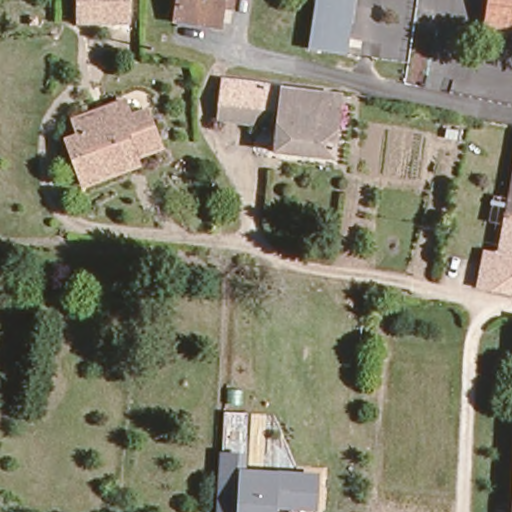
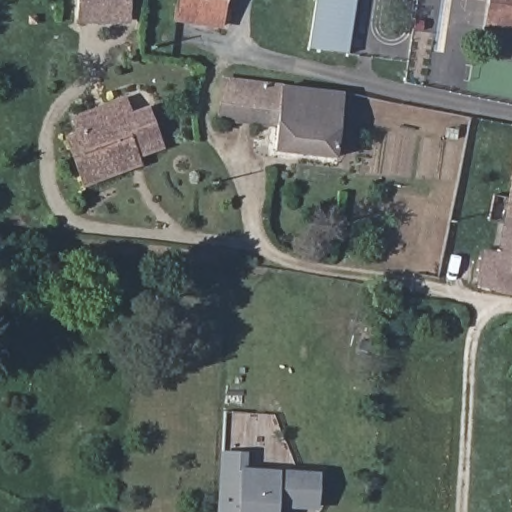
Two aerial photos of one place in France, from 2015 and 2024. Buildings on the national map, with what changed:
unchanged [(132,20),(86,23),(85,0),(131,0),(132,20)]
unchanged [(233,12),(223,11),(220,31),(176,24),(179,0),(235,0),(233,12)]
unchanged [(310,50),(317,0),(357,0),(357,4),(349,56),(310,50)]
unchanged [(494,34),(499,0),(512,0),(512,37),(494,34)]
unchanged [(334,165),(275,157),(280,119),(258,116),(257,129),(222,125),(227,85),(342,101),(334,165)]
unchanged [(71,122),(124,101),(131,117),(148,109),(164,146),(139,156),(100,172),(83,136),(77,138),(71,122)]
unchanged [(100,172),(139,156),(142,165),(86,188),(67,143),(77,138),(83,136),(100,172)]
unchanged [(506,218),(508,200),(512,179),(512,219),(506,218)]
unchanged [(487,253),(497,256),(503,224),(488,222),(492,197),(508,200),(506,218),(512,219),(512,293),(492,290),(480,287),(487,253)]
unchanged [(226,484),(226,455),(242,455),(240,471),(318,472),(317,507),(277,506),(278,512),(225,512),(226,489),(226,484)]

